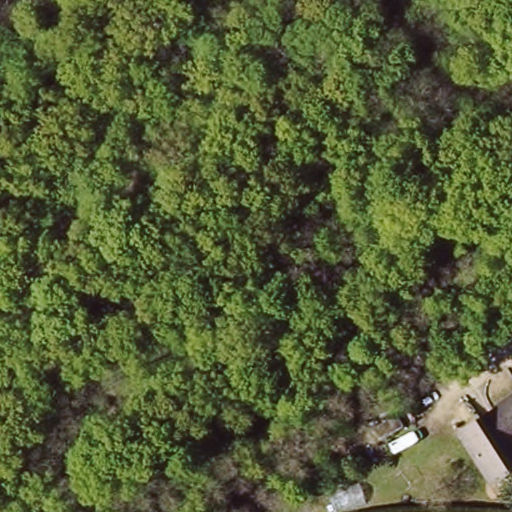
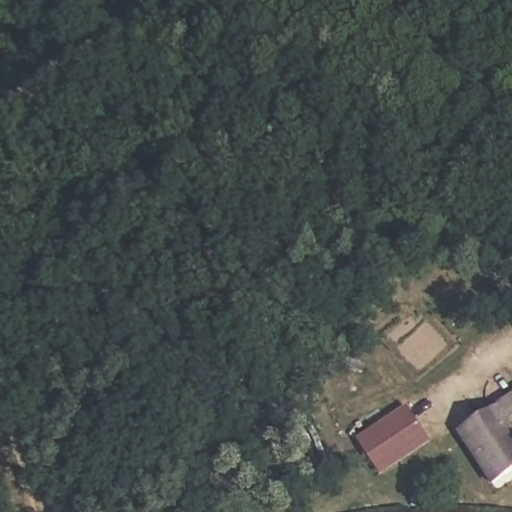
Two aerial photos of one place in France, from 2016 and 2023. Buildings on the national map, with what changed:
unchanged [(472,423),(512,397),(512,469),(505,474),(472,423)]
new [(381,478),(356,440),(407,406),(432,441),(381,478)]

